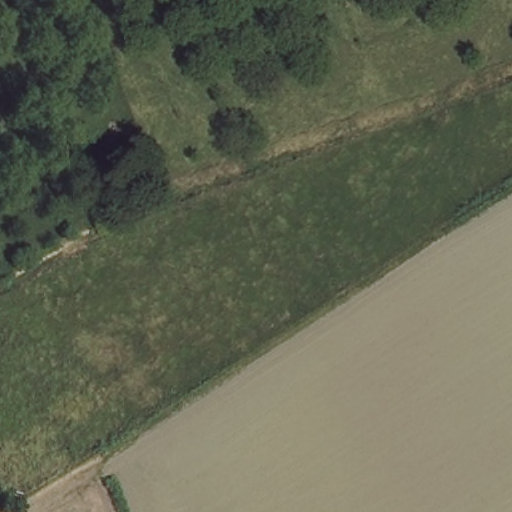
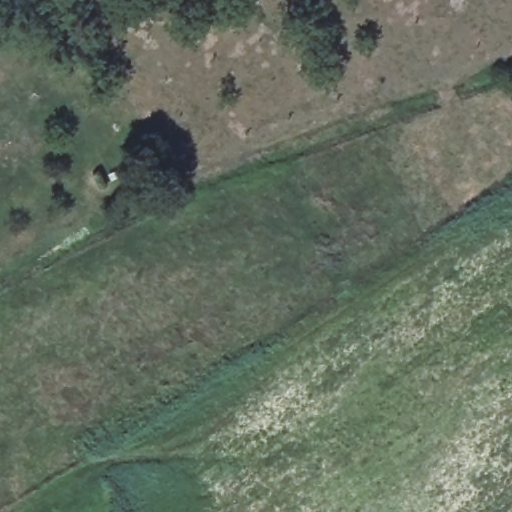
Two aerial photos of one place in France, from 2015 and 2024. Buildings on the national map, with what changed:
[]

